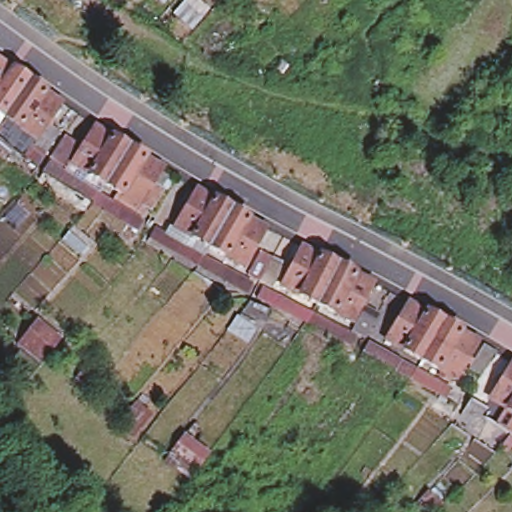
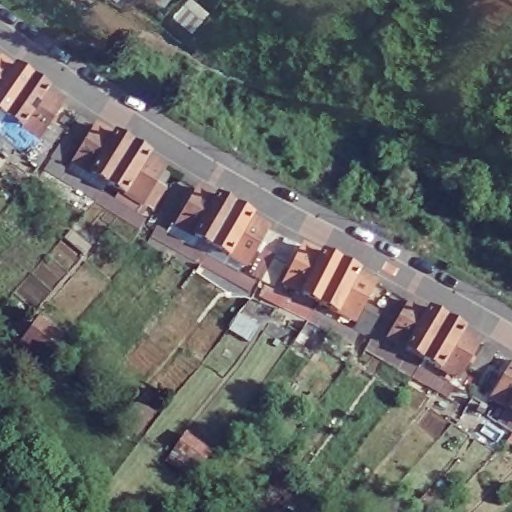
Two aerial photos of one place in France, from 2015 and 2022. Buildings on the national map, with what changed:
unchanged [(113,0),(121,0),(118,4),(113,0)]
unchanged [(0,111),(0,58),(26,75),(0,111)]
unchanged [(26,75),(39,84),(44,89),(58,99),(44,118),(58,128),(41,153),(33,165),(0,140),(0,124),(28,144),(33,134),(0,111),(26,75)]
unchanged [(126,143),(101,180),(68,158),(91,123),(111,134),(126,143)]
unchanged [(74,138),(61,161),(48,154),(61,130),(74,138)]
unchanged [(141,211),(129,204),(133,198),(101,180),(126,143),(159,164),(146,185),(154,189),(141,211)]
unchanged [(133,227),(88,197),(40,166),(45,158),(96,188),(140,215),(133,227)]
unchanged [(318,177),(351,191),(354,194),(381,208),(369,231),(342,214),(338,226),(302,207),(318,177)]
unchanged [(228,204),(205,243),(173,223),(193,186),(228,204)]
unchanged [(228,204),(263,224),(241,261),(205,243),(228,204)]
unchanged [(193,262),(145,233),(149,225),(199,252),(246,278),(241,290),(193,262)]
unchanged [(279,289),(281,283),(278,281),(296,242),(333,260),(313,299),(293,289),(289,295),(279,289)]
unchanged [(268,283),(254,278),(243,270),(256,247),(267,253),(280,261),(268,283)]
unchanged [(369,279),(349,318),(313,299),(333,260),(369,279)]
unchanged [(346,342),(303,319),(254,295),(259,285),(307,309),(351,332),(346,342)]
unchanged [(384,335),(404,298),(423,307),(439,317),(419,355),(384,335)]
unchanged [(361,332),(349,324),(361,301),(376,309),(361,332)]
unchanged [(437,373),(439,367),(419,355),(439,317),(474,337),(454,374),(449,372),(447,378),(437,373)]
unchanged [(26,338),(38,324),(59,344),(47,359),(26,338)]
unchanged [(442,394),(407,374),(361,348),(366,339),(413,366),(448,386),(442,394)]
unchanged [(465,363),(479,340),(492,347),(478,371),(465,363)]
unchanged [(493,398),(512,365),(512,411),(493,398)]
unchanged [(512,439),(493,457),(474,444),(453,431),(454,425),(469,399),(491,414),(487,420),(512,437),(512,439)]
unchanged [(184,437),(210,456),(193,483),(176,472),(180,468),(168,460),(184,437)]

